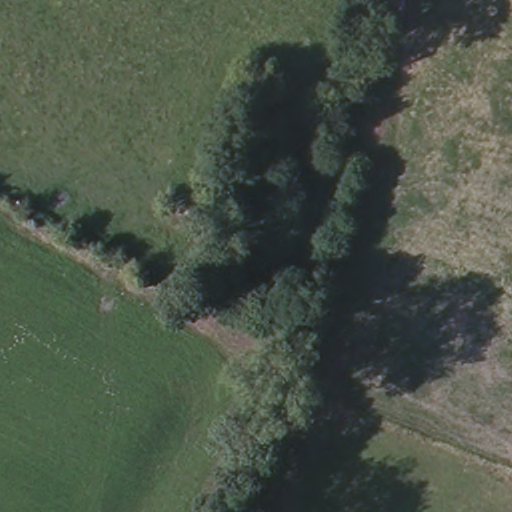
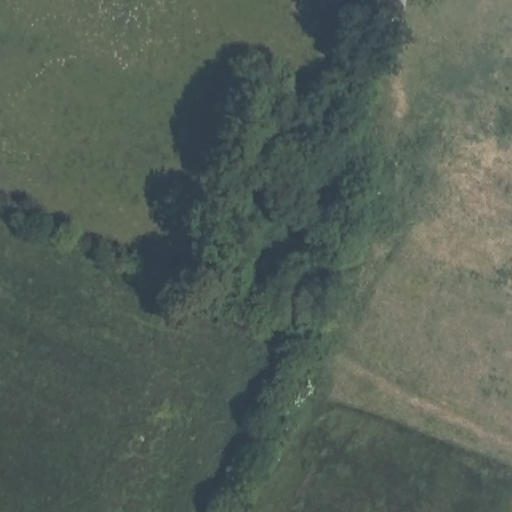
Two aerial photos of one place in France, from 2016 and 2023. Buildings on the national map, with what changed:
unchanged [(377,11),(378,0),(409,0),(405,19),(377,11)]

